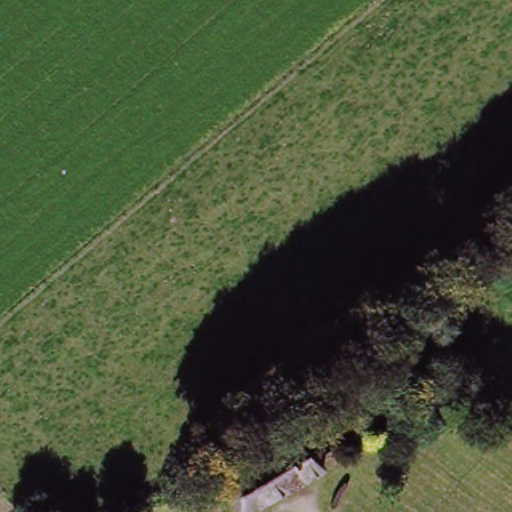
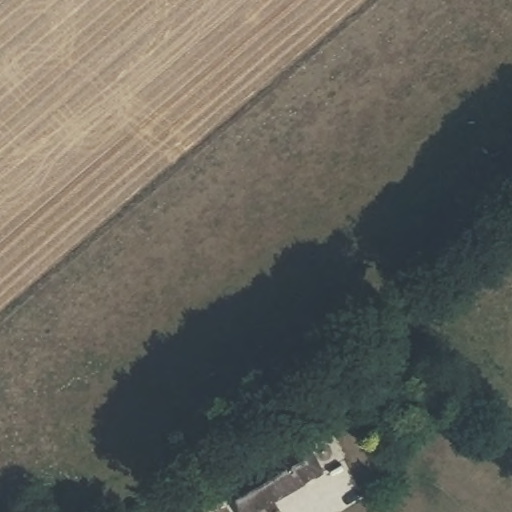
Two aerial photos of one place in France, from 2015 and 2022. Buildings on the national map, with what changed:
unchanged [(252,512),(236,512),(223,489),(263,464),(251,444),(291,420),(321,470),(252,512)]

